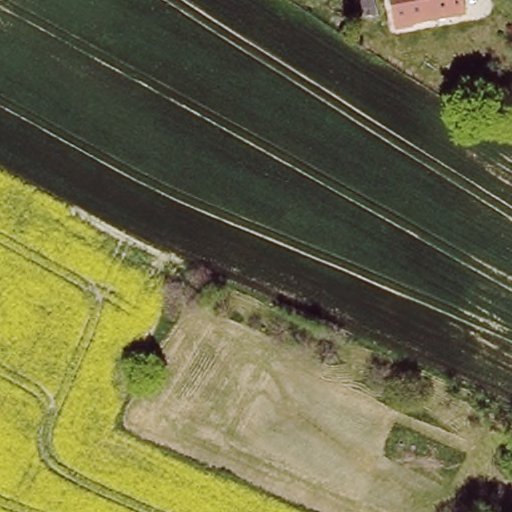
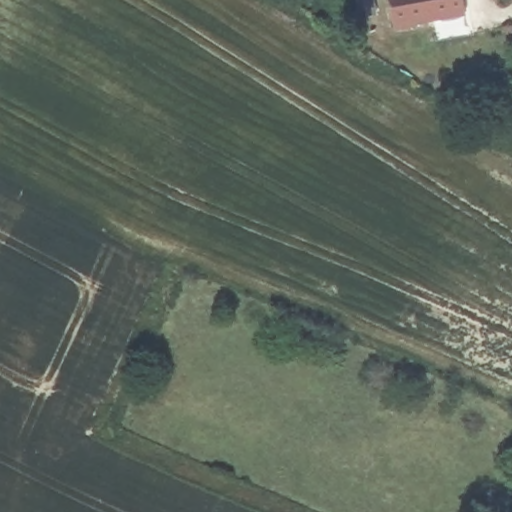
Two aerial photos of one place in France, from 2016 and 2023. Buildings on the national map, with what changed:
unchanged [(362,17),(358,0),(375,0),(377,14),(362,17)]
unchanged [(395,32),(389,0),(465,0),(468,16),(395,32)]

